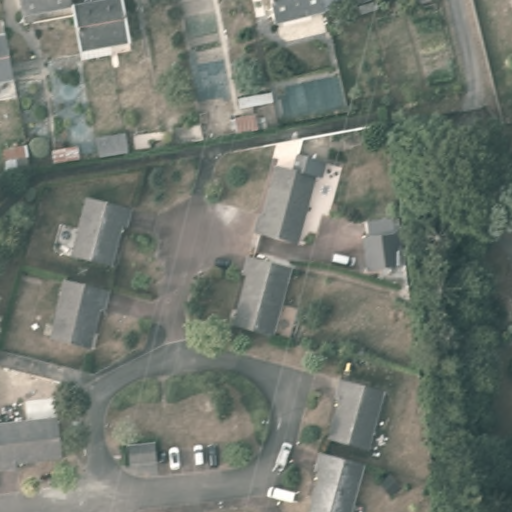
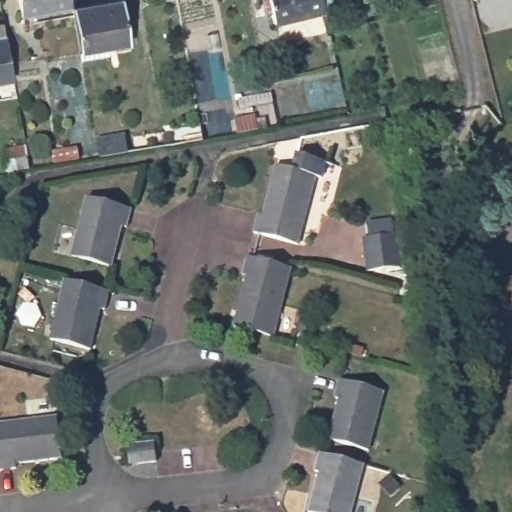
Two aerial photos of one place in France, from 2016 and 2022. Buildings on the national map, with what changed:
unchanged [(25,14),(23,0),(75,0),(76,6),(25,14)]
unchanged [(128,0),(135,42),(85,50),(76,7),(119,0),(128,0)]
unchanged [(271,0),(322,0),(325,11),(276,22),(271,0)]
unchanged [(0,80),(0,21),(8,19),(18,77),(0,80)]
unchanged [(231,131),(229,116),(251,112),(251,117),(260,116),(262,125),(231,131)]
unchanged [(92,136),(120,132),(124,150),(94,155),(92,136)]
unchanged [(26,151),(71,142),(74,158),(28,167),(26,151)]
unchanged [(9,167),(8,158),(0,158),(0,148),(21,145),(24,165),(9,167)]
unchanged [(261,213),(265,214),(279,164),(300,170),(305,152),(344,164),(339,182),(318,176),(299,243),(256,231),(261,213)]
unchanged [(129,224),(125,223),(115,263),(75,251),(91,188),(135,200),(129,224)]
unchanged [(370,267),(366,234),(403,229),(408,262),(370,267)]
unchanged [(274,329),(234,318),(248,268),(244,267),(250,249),(293,261),(274,329)]
unchanged [(108,307),(103,305),(93,344),(53,334),(69,276),(112,288),(108,307)]
unchanged [(371,442),(330,431),(341,392),(337,391),(342,372),(387,385),(371,442)]
unchanged [(67,454),(20,459),(20,465),(1,467),(0,453),(0,420),(62,414),(67,454)]
unchanged [(131,438),(155,435),(158,454),(133,457),(131,438)]
unchanged [(352,512),(336,512),(311,505),(321,467),(316,466),(322,446),(366,458),(352,512)]
unchanged [(0,468),(0,453),(1,467),(0,468)]

